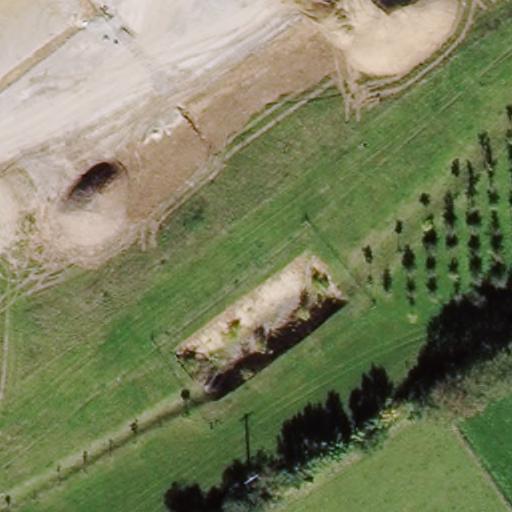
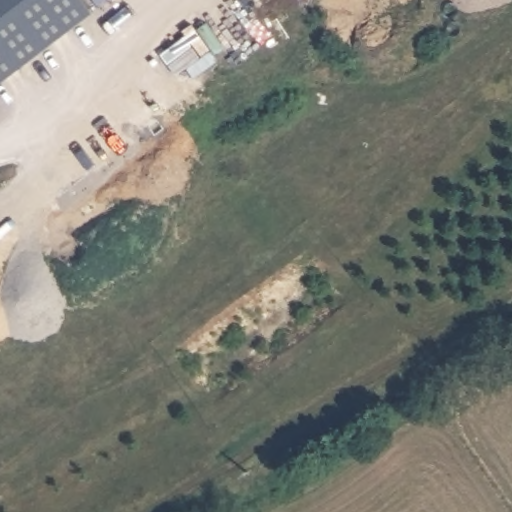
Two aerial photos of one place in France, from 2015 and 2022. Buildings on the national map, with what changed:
new [(77,0),(83,7),(0,69),(0,0),(77,0)]

